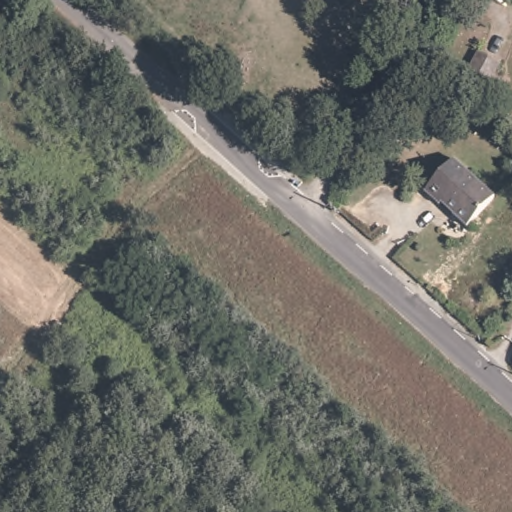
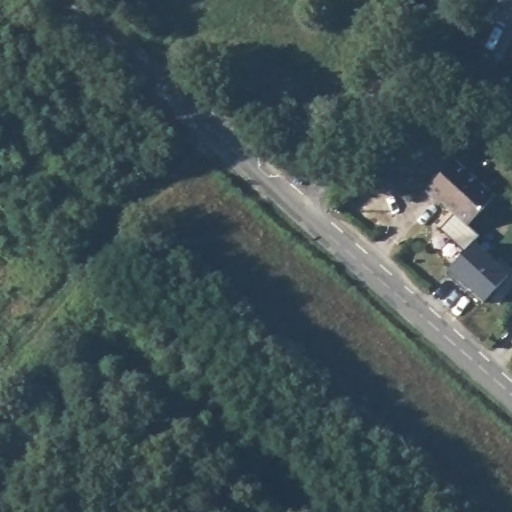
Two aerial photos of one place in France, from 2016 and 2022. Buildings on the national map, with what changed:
unchanged [(483,51),(502,61),(482,94),(464,83),(483,51)]
unchanged [(451,156),(492,194),(464,224),(437,198),(433,201),(420,188),(451,156)]
new [(473,243),(509,275),(483,303),(461,282),(457,286),(445,274),(473,243)]

